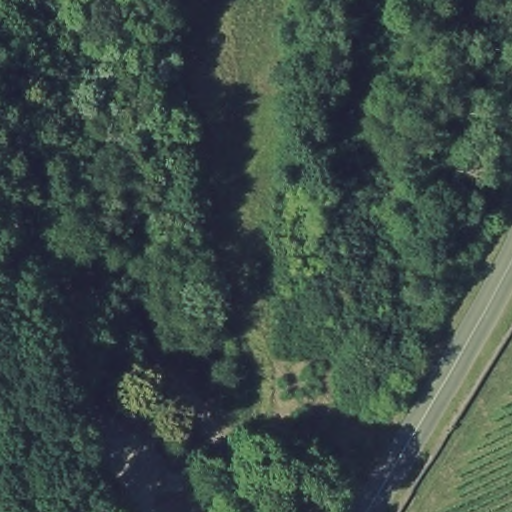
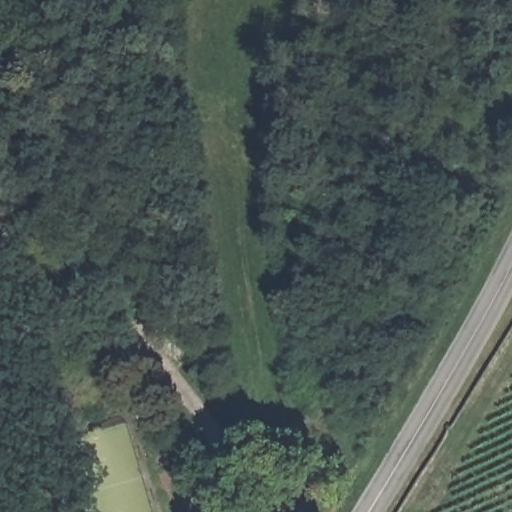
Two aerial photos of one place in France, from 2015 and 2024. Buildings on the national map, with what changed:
[]

